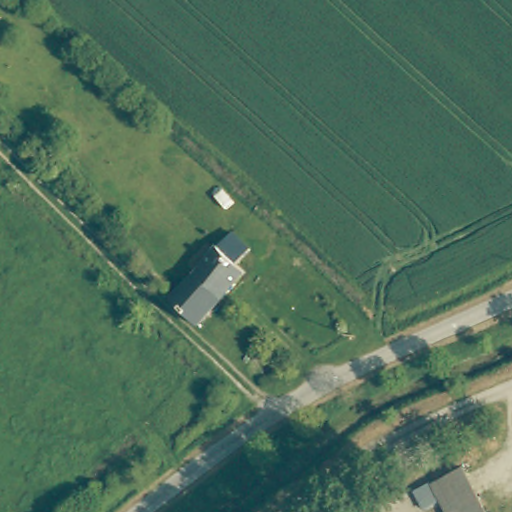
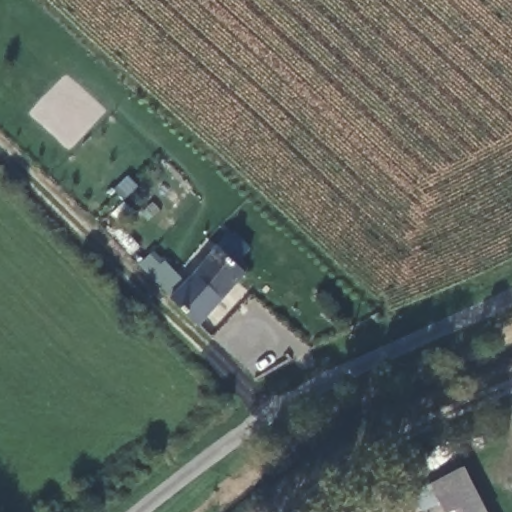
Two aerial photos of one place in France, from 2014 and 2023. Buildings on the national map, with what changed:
unchanged [(231,238),(253,257),(239,271),(247,278),(219,305),(192,279),(231,238)]
unchanged [(219,305),(195,329),(169,304),(192,279),(219,305)]
unchanged [(485,512),(441,512),(430,481),(463,467),(485,512)]

